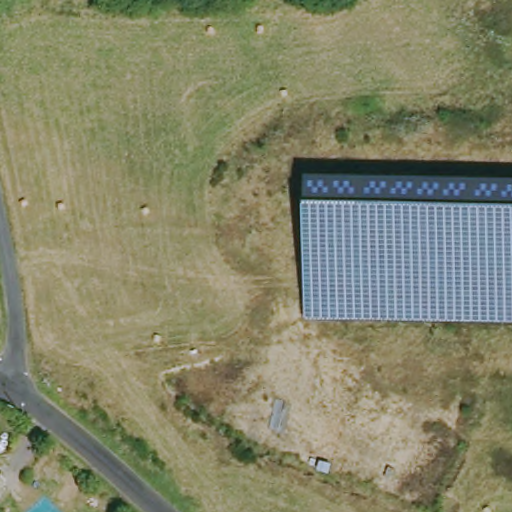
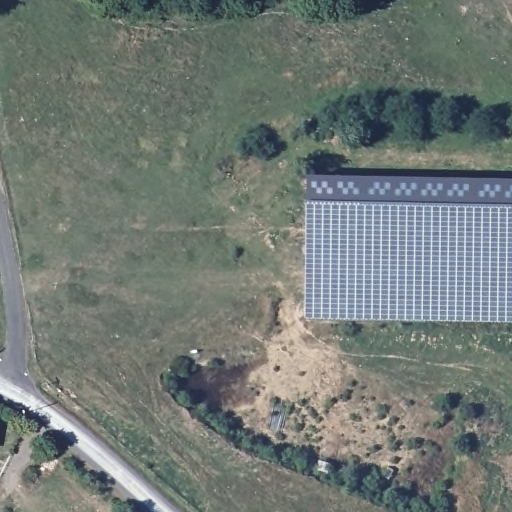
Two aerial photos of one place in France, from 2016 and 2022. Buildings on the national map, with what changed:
unchanged [(512,183),(512,324),(305,321),(307,179),(512,183)]

